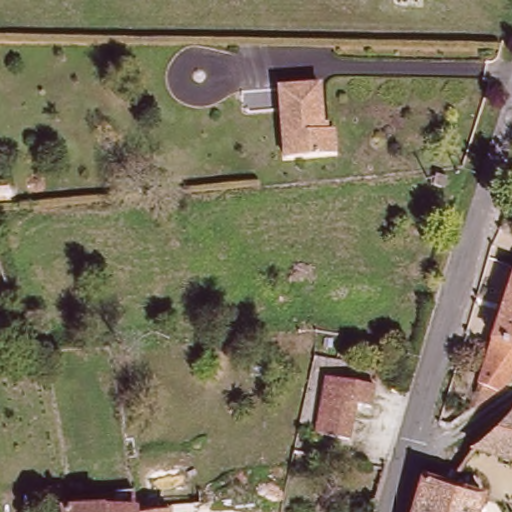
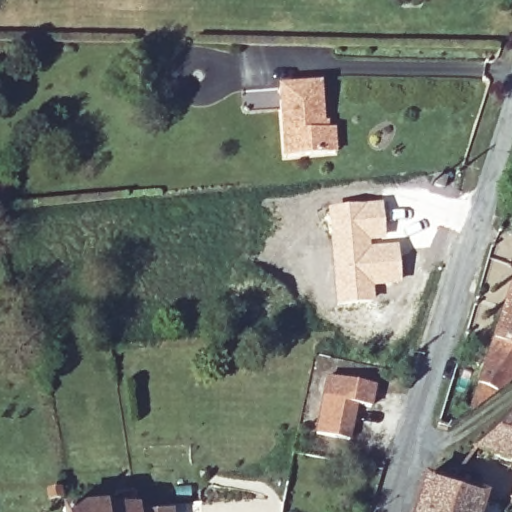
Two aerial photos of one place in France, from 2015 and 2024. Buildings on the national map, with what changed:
unchanged [(336,154),(325,155),(286,158),(280,88),(320,84),(324,131),(334,130),(336,154)]
unchanged [(434,186),(437,176),(447,179),(444,189),(434,186)]
new [(382,203),(387,244),(398,243),(402,283),(375,287),(376,300),(337,305),(327,209),(382,203)]
unchanged [(512,277),(512,377),(493,391),(469,410),(468,409),(509,277),(512,277)]
unchanged [(371,408),(356,405),(350,440),(317,434),(327,378),(375,387),(371,408)]
unchanged [(504,411),(510,412),(512,411),(512,463),(463,450),(504,411)]
unchanged [(480,497),(475,512),(409,512),(419,479),(444,486),(480,497)]
unchanged [(61,498),(49,500),(48,488),(59,486),(61,498)]
unchanged [(111,508),(110,494),(130,492),(132,512),(58,512),(58,511),(111,508)]

